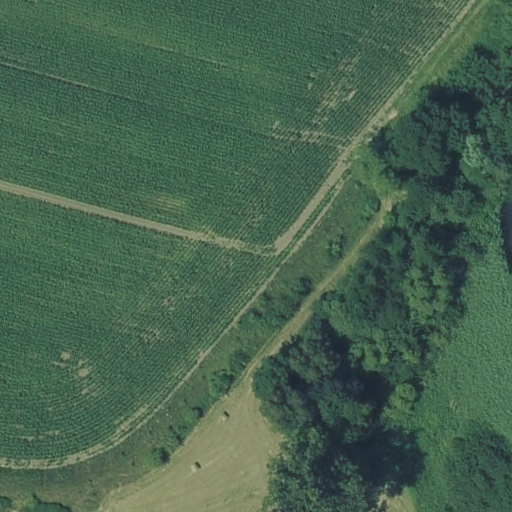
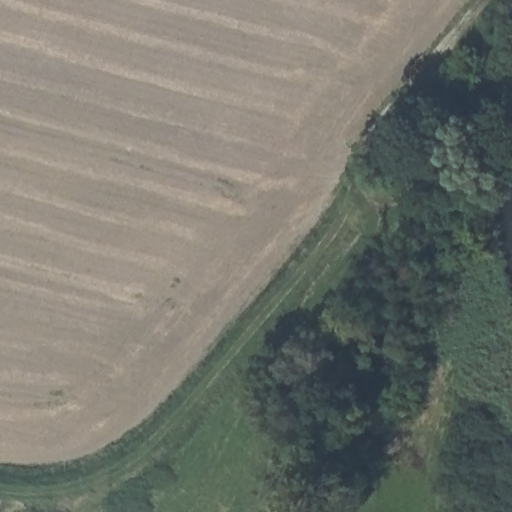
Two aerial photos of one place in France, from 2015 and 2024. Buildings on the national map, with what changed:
unchanged [(465,54),(463,91),(443,92),(445,57),(445,51),(449,52),(465,54)]

